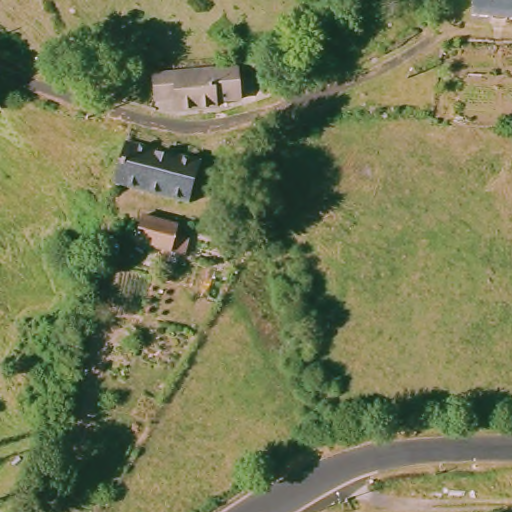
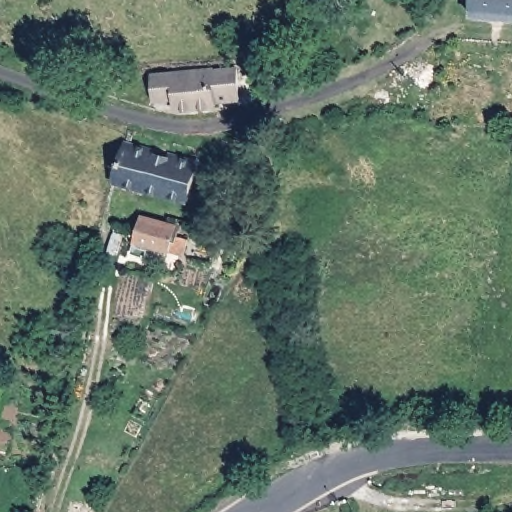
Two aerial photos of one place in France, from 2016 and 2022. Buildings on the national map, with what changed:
unchanged [(472,25),(473,0),(512,0),(512,30),(472,25)]
unchanged [(230,103),(230,108),(191,111),(189,100),(169,101),(169,75),(252,71),(251,98),(230,103)]
unchanged [(200,209),(122,189),(130,157),(140,145),(214,167),(200,209)]
unchanged [(140,251),(147,227),(180,237),(178,245),(195,250),(190,266),(140,251)]

